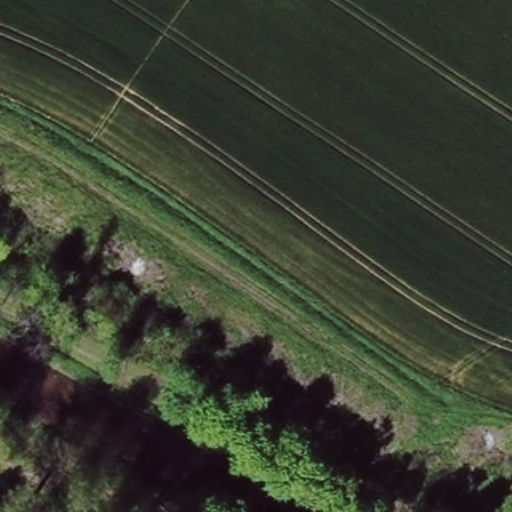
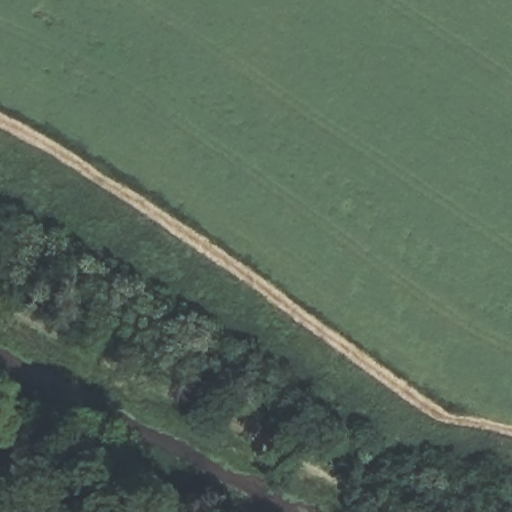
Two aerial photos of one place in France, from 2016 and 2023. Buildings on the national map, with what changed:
[]

